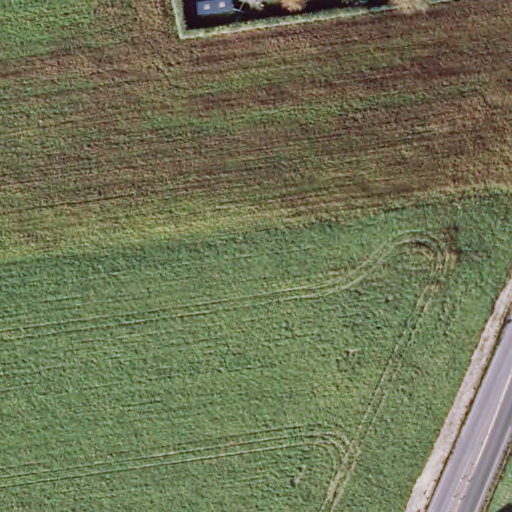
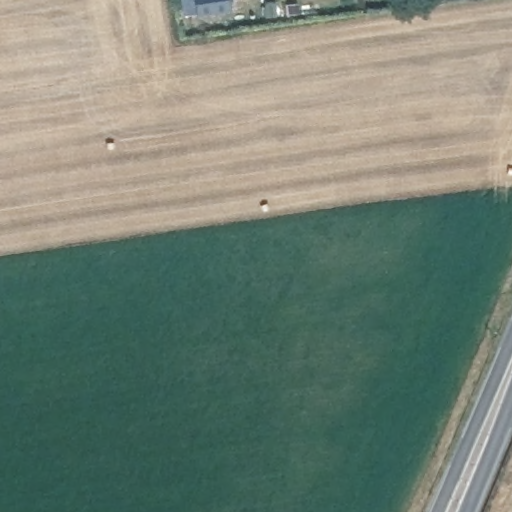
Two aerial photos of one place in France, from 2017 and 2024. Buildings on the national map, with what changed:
unchanged [(192,0),(226,0),(228,14),(195,16),(192,0)]

